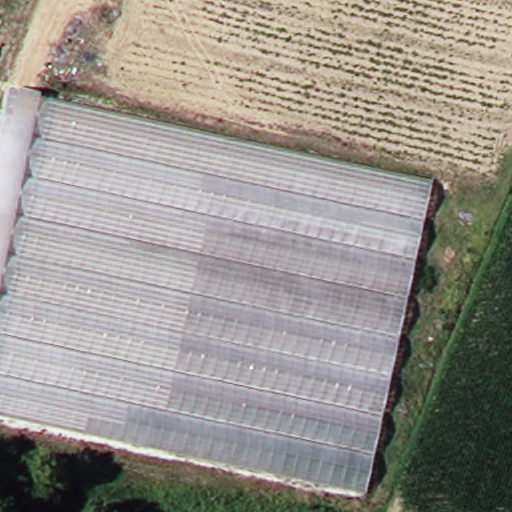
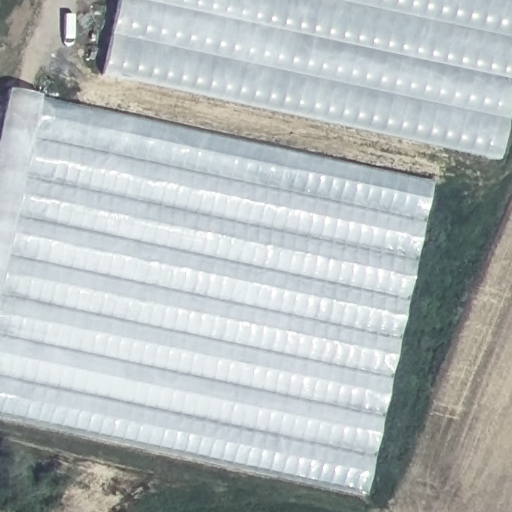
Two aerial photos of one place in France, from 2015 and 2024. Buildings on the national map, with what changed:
new [(512,95),(498,161),(99,79),(117,0),(512,0),(512,95)]
new [(6,92),(38,98),(0,272),(0,121),(6,92)]
unchanged [(434,182),(367,492),(0,413),(0,294),(43,95),(434,182)]

